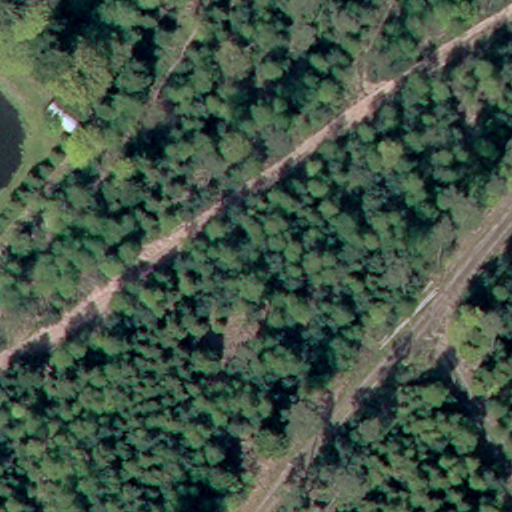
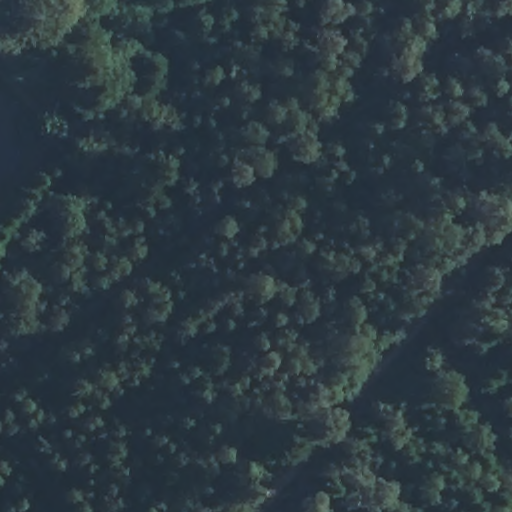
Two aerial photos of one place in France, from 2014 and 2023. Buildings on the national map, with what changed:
unchanged [(26,78),(48,105),(35,116),(16,89),(26,78)]

